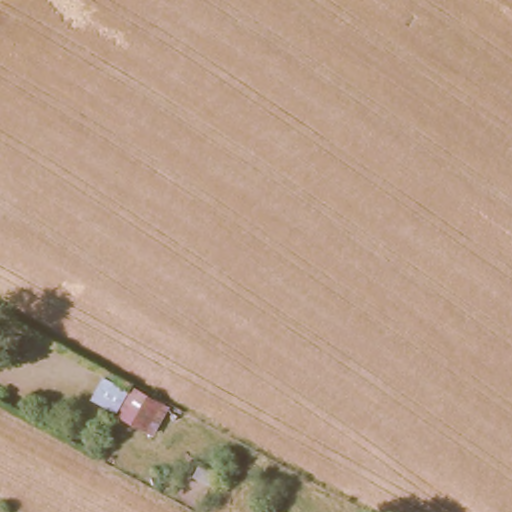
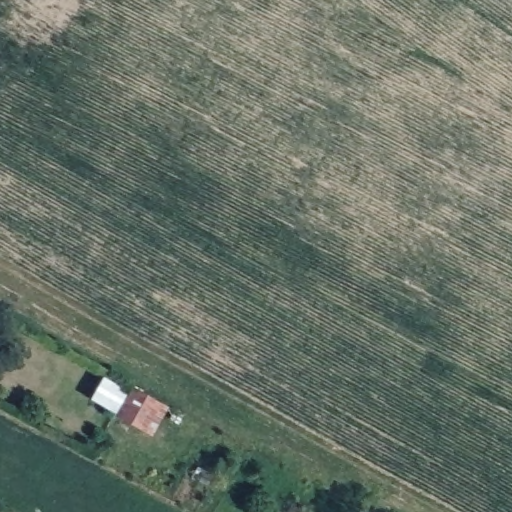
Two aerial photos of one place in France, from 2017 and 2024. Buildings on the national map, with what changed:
unchanged [(132,394),(134,390),(167,408),(154,434),(92,400),(104,378),(132,394)]

